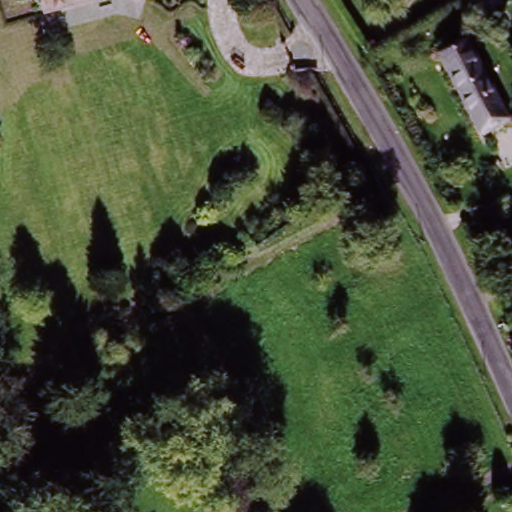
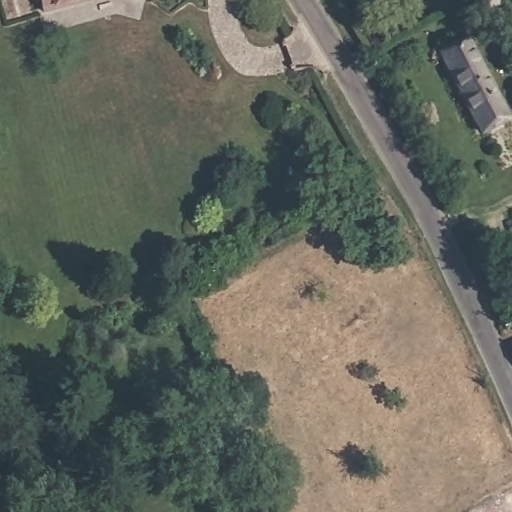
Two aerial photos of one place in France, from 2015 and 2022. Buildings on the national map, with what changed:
unchanged [(45,0),(90,0),(77,4),(79,8),(51,17),(45,0)]
unchanged [(512,121),(512,133),(490,143),(449,65),(475,50),(512,121)]
unchanged [(284,512),(267,512),(265,508),(277,501),(284,512)]

